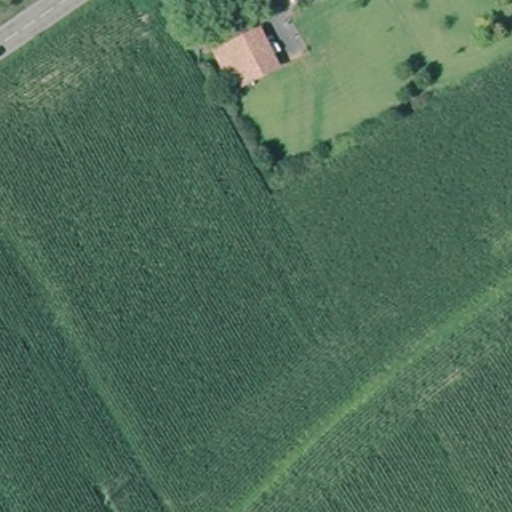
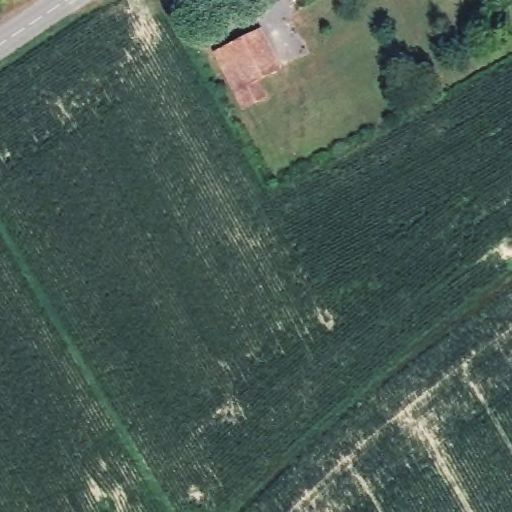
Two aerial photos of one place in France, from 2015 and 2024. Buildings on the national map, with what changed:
unchanged [(228,52),(259,34),(281,70),(250,87),(228,52)]

